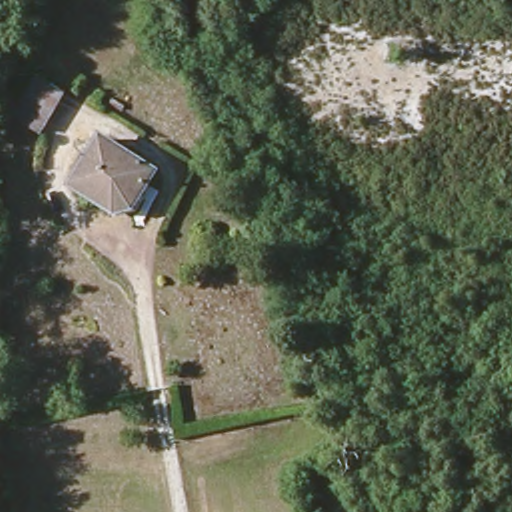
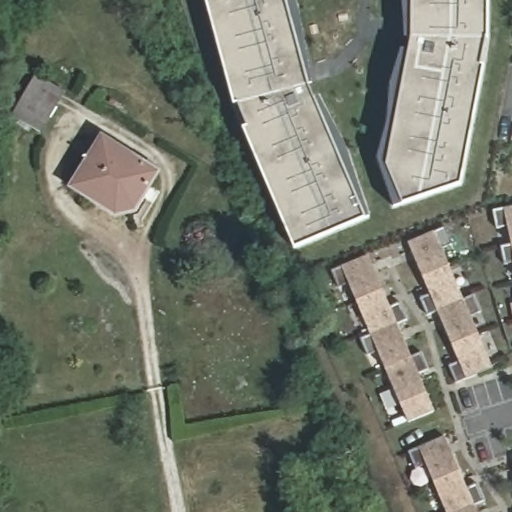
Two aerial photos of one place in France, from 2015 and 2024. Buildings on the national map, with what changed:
new [(315,91),(370,224),(300,255),(237,119),(205,0),(288,0),(315,91)]
new [(492,43),(466,188),(407,209),(390,170),(416,40),(416,0),(494,0),(492,43)]
unchanged [(66,90),(42,130),(15,115),(39,74),(66,90)]
unchanged [(113,216),(91,202),(69,189),(99,142),(139,166),(155,175),(149,186),(142,196),(132,212),(113,216)]
new [(497,228),(495,210),(504,208),(512,206),(512,242),(508,226),(497,228)]
new [(432,294),(409,241),(435,230),(445,226),(452,243),(442,247),(464,298),(437,309),(428,312),(421,298),(432,294)]
new [(501,246),(512,245),(512,262),(505,264),(501,246)]
new [(372,333),(357,300),(350,283),(341,287),(333,270),(342,266),(368,255),(391,306),(400,302),(407,319),(397,323),(372,333)]
new [(460,360),(437,309),(464,298),(473,295),(481,311),(471,315),(493,367),(467,378),(457,382),(449,365),(460,360)]
new [(412,357),(386,369),(378,350),(367,355),(361,338),(372,333),(397,323),(412,357)]
new [(407,421),(386,369),(412,357),(422,353),(428,369),(419,373),(435,410),(407,421)]
new [(415,468),(408,452),(420,447),(446,436),(467,488),(477,484),(483,500),(474,505),(456,512),(447,512),(427,463),(415,468)]
new [(477,512),(456,512),(474,505),(477,512)]

